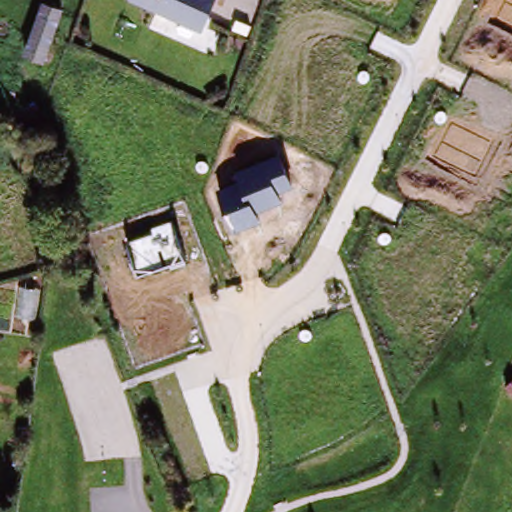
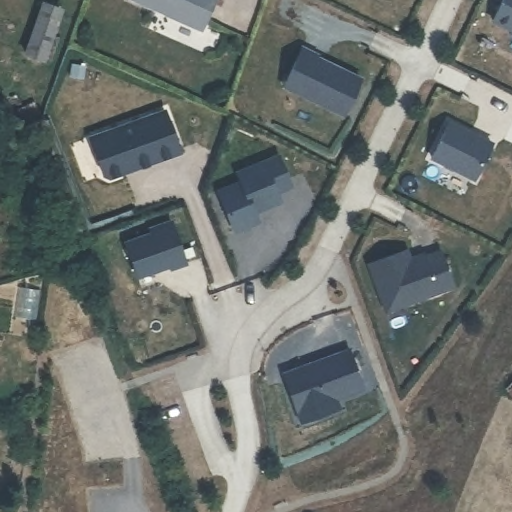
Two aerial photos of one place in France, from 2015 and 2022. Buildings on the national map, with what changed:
unchanged [(140,0),(214,0),(203,26),(140,0)]
new [(501,0),(512,0),(512,31),(490,21),(501,0)]
unchanged [(45,62),(25,54),(43,1),(62,6),(45,62)]
new [(302,45),(317,53),(315,55),(360,77),(342,113),(282,83),(302,45)]
new [(162,108),(177,148),(150,158),(151,160),(133,166),(132,161),(122,165),(119,172),(107,176),(101,173),(87,140),(162,108)]
new [(430,158),(450,121),(493,143),(473,181),(430,158)]
unchanged [(237,183),(235,173),(263,164),(262,159),(281,154),(292,186),(277,192),(282,203),(257,213),(260,223),(233,233),(217,189),(237,183)]
unchanged [(152,233),(150,228),(172,219),(185,263),(136,279),(123,241),(152,233)]
new [(368,262),(406,249),(410,258),(425,253),(426,255),(440,250),(452,285),(385,309),(368,262)]
new [(298,371),(297,368),(347,350),(360,389),(332,398),(335,408),(297,422),(282,376),(298,371)]

